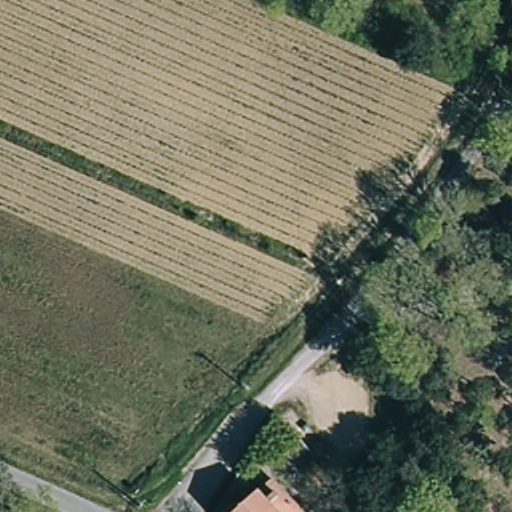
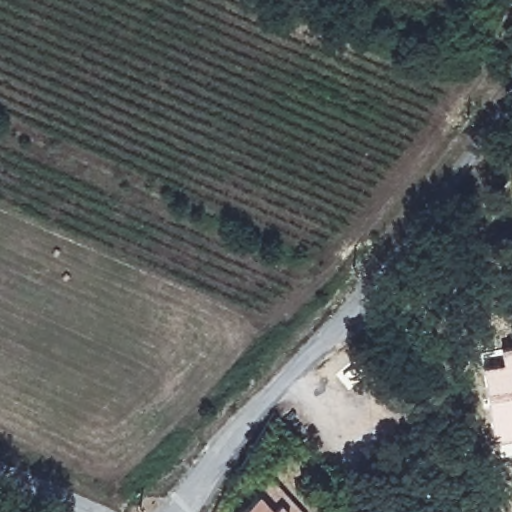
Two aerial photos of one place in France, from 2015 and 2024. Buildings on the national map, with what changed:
new [(481,365),(502,362),(500,347),(512,345),(512,437),(493,440),(481,365)]
unchanged [(308,482),(301,487),(289,472),(296,467),(308,482)]
unchanged [(293,512),(233,512),(264,482),(293,512)]

